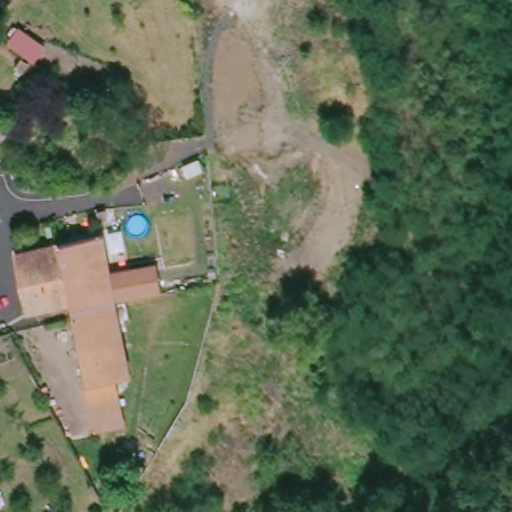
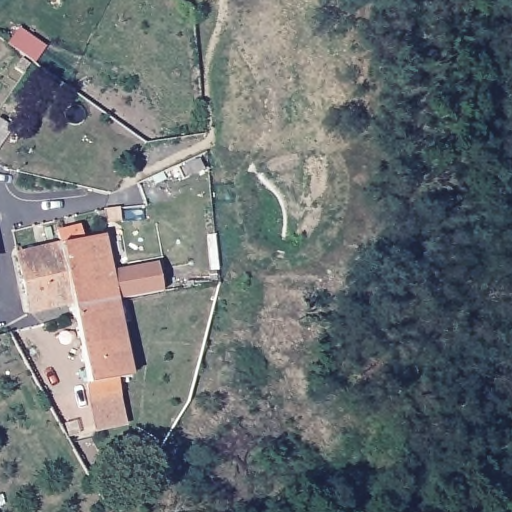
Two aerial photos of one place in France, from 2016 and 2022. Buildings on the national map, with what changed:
unchanged [(15,130),(0,151),(0,120),(15,130)]
unchanged [(105,241),(98,242),(93,217),(99,216),(105,239),(105,240),(105,241)]
unchanged [(68,308),(56,249),(98,242),(112,305),(112,307),(71,315),(68,308)]
unchanged [(15,257),(56,249),(68,308),(27,315),(15,257)]
unchanged [(157,264),(162,292),(117,299),(112,272),(157,264)]
unchanged [(94,431),(88,404),(72,322),(71,315),(112,307),(127,378),(111,382),(120,422),(121,426),(94,431)]

